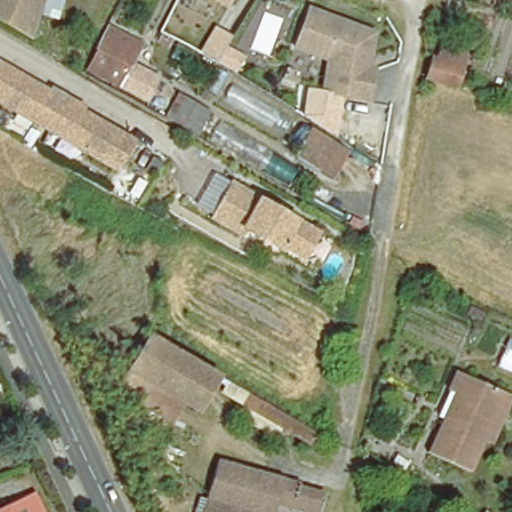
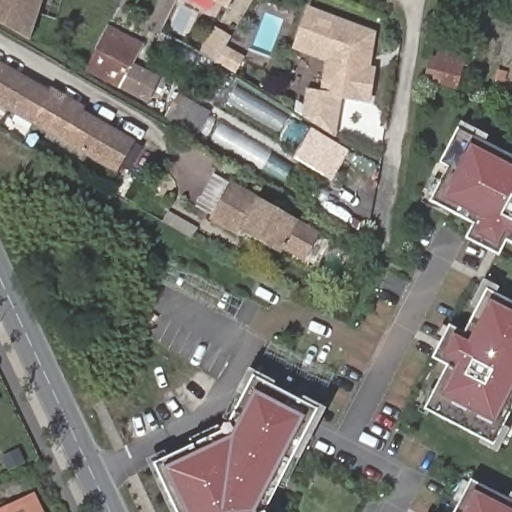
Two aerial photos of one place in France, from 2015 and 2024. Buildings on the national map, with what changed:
unchanged [(0,17),(0,0),(41,0),(30,35),(0,17)]
new [(204,0),(214,0),(232,0),(226,11),(212,4),(204,0)]
unchanged [(310,6),(317,9),(350,23),(375,33),(370,55),(366,54),(363,66),(373,69),(366,100),(320,90),(320,89),(327,58),(298,46),(295,45),(310,6)]
new [(232,75),(215,64),(200,56),(216,29),(230,38),(225,48),(242,59),(232,75)]
unchanged [(137,97),(120,89),(89,72),(97,53),(95,51),(102,36),(136,54),(130,70),(146,78),(137,97)]
unchanged [(455,90),(423,81),(429,55),(436,57),(440,40),(466,47),(455,90)]
unchanged [(49,90),(80,107),(77,110),(130,141),(113,170),(0,104),(0,65),(47,93),(49,90)]
unchanged [(297,117),(302,90),(336,100),(332,140),(347,146),(332,177),(295,155),(305,127),(297,117)]
unchanged [(193,139),(187,135),(169,125),(185,97),(210,111),(193,139)]
new [(506,239),(498,255),(466,239),(473,224),(430,200),(448,166),(440,161),(458,127),(512,156),(512,242),(506,239)]
unchanged [(229,183),(315,233),(301,257),(280,245),(272,247),(240,229),(237,233),(209,217),(229,183)]
new [(493,445),(425,409),(446,366),(431,358),(449,323),(465,331),(487,290),(512,303),(512,409),(493,445)]
demolished [(481,310),(478,317),(464,311),(467,302),(481,310)]
demolished [(150,336),(218,377),(196,413),(183,405),(129,372),(150,336)]
demolished [(481,430),(465,466),(427,447),(442,412),(446,415),(458,389),(453,387),(446,383),(456,365),(502,386),(481,430)]
unchanged [(0,381),(0,370),(4,379),(0,381)]
new [(154,462),(226,430),(255,376),(318,410),(266,512),(177,512),(154,462)]
demolished [(312,435),(307,445),(242,407),(249,396),(312,435)]
demolished [(280,505),(277,512),(208,512),(221,462),(287,480),(280,505)]
new [(470,478),(512,499),(512,512),(454,512),(470,478)]
demolished [(327,496),(322,512),(304,512),(297,510),(303,489),(327,496)]
unchanged [(0,510),(13,505),(30,497),(37,512),(0,512),(0,510)]
demolished [(490,512),(482,512),(485,508),(490,512)]

